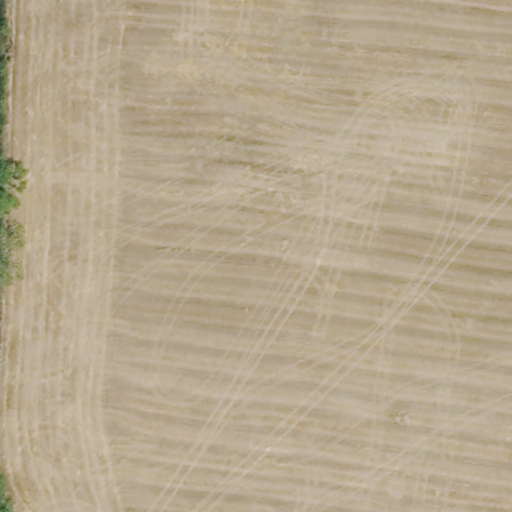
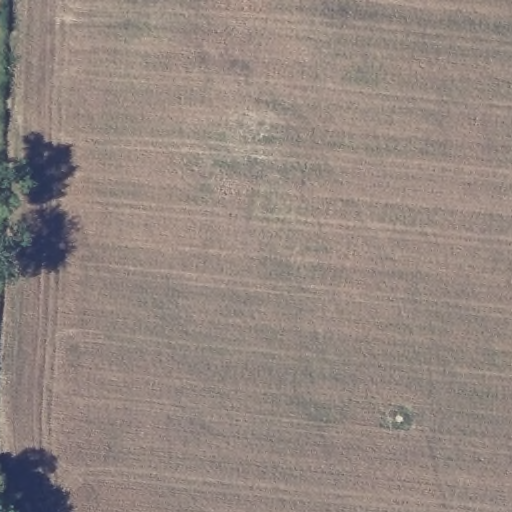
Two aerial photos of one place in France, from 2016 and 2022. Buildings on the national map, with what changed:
[]

